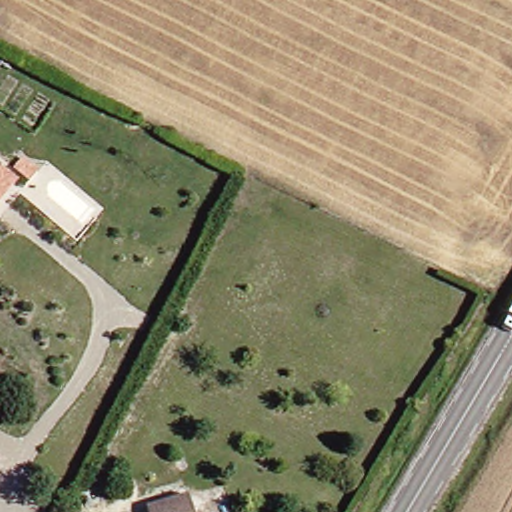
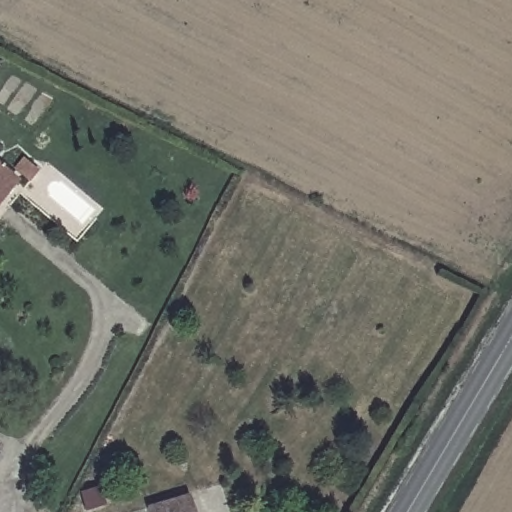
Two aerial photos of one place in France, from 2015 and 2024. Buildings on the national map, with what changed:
unchanged [(17,174),(26,182),(9,202),(0,212),(0,160),(17,174)]
unchanged [(199,489),(205,512),(155,512),(152,501),(199,489)]

